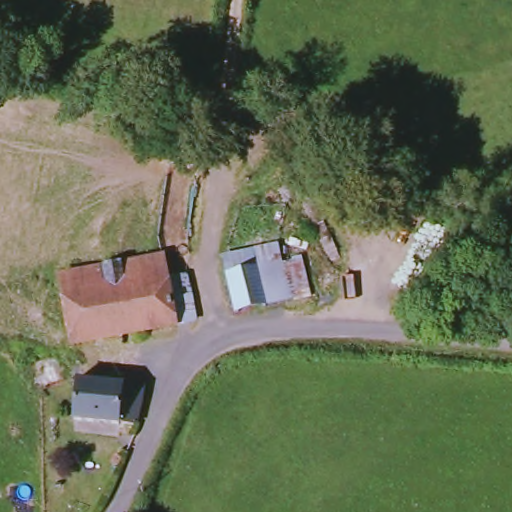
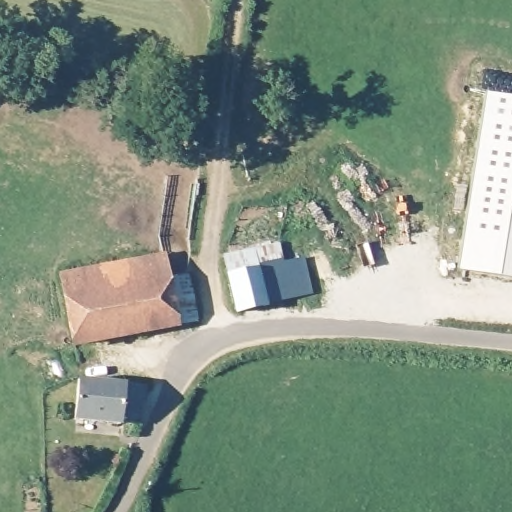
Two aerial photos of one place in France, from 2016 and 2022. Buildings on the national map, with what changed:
new [(484,94),(512,98),(512,280),(455,270),(484,94)]
unchanged [(284,244),(298,305),(261,310),(235,317),(225,276),(225,255),(284,244)]
unchanged [(167,254),(171,279),(190,275),(200,325),(180,330),(73,350),(59,275),(167,254)]
unchanged [(143,386),(143,426),(83,426),(83,387),(143,386)]
unchanged [(116,477),(104,472),(109,461),(121,466),(116,477)]

